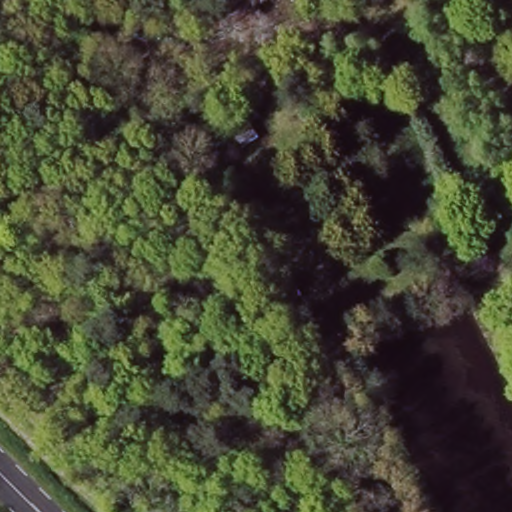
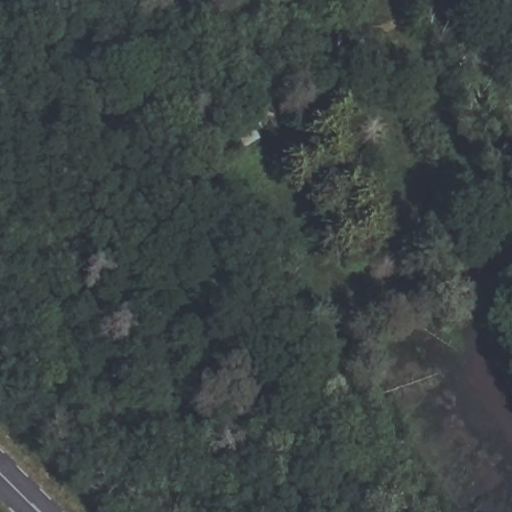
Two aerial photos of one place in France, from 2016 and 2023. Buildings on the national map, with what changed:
unchanged [(249,105),(258,121),(251,125),(258,147),(243,153),(223,120),(249,105)]

